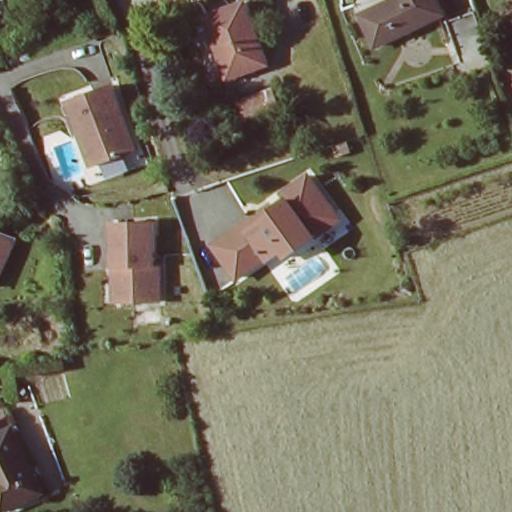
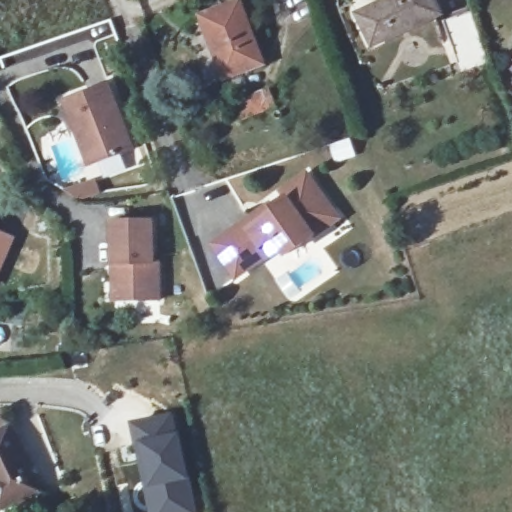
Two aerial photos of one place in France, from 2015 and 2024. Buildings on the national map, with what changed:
unchanged [(438,14),(368,39),(356,7),(376,0),(433,0),(438,14)]
unchanged [(258,64),(216,78),(195,15),(236,1),(258,64)]
unchanged [(480,63),(451,69),(440,22),(469,15),(480,63)]
unchanged [(85,140),(70,102),(113,85),(138,150),(99,165),(95,167),(85,140)]
unchanged [(271,213),(265,202),(311,173),(342,223),(236,281),(216,247),(271,213)]
unchanged [(116,265),(110,223),(150,217),(156,259),(163,258),(168,293),(128,300),(121,300),(116,265)]
unchanged [(0,262),(0,236),(10,240),(0,262)]
new [(132,422),(177,412),(183,433),(193,480),(199,512),(151,512),(141,466),(132,422)]
unchanged [(0,510),(0,509),(0,431),(8,426),(40,489),(0,510)]

